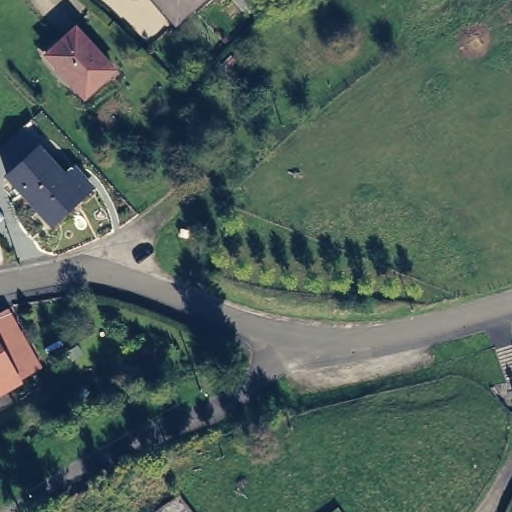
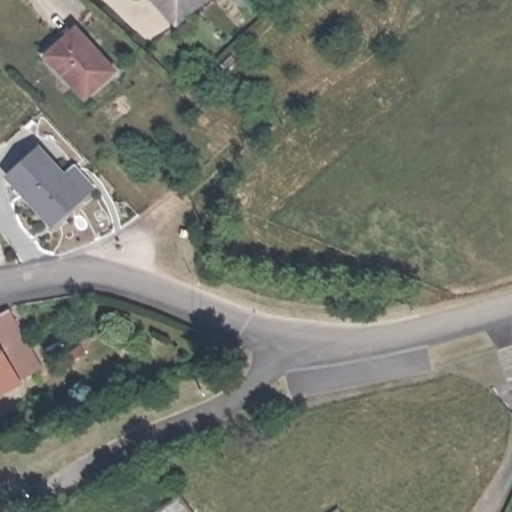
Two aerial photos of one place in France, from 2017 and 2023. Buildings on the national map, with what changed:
unchanged [(170,18),(155,0),(191,0),(170,18)]
unchanged [(108,71),(80,98),(42,55),(70,29),(108,71)]
unchanged [(9,176),(39,149),(64,177),(75,168),(92,188),(82,196),(52,223),(9,176)]
unchanged [(0,316),(9,311),(42,368),(0,391),(0,316)]

